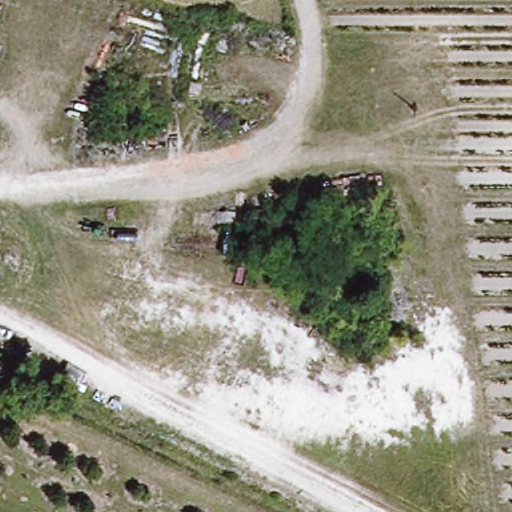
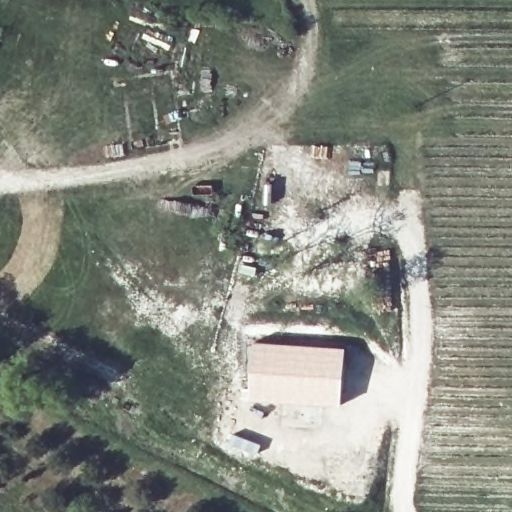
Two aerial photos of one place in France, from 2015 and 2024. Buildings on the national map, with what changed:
new [(257,342),(345,349),(340,406),(251,399),(257,342)]

